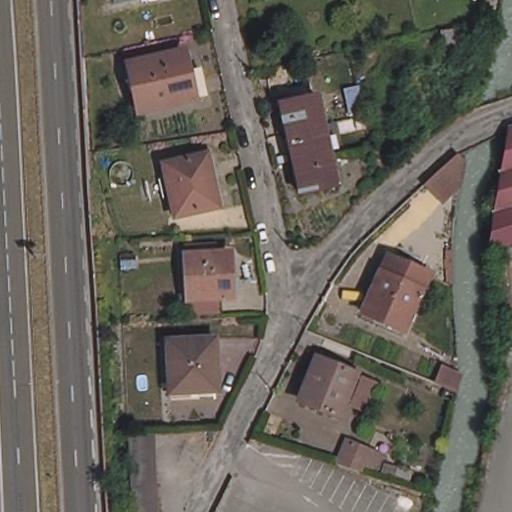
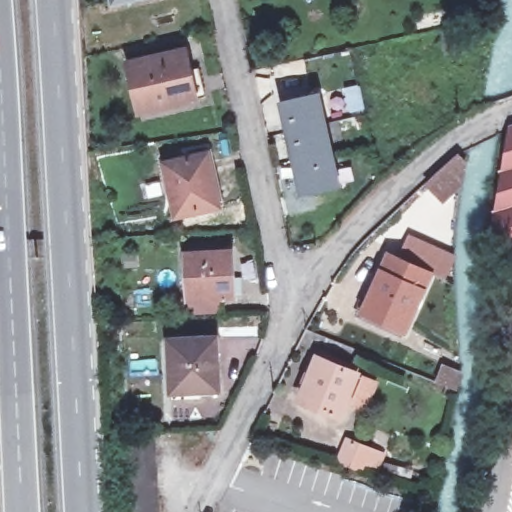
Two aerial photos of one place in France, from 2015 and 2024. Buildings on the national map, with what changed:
unchanged [(117,2),(117,0),(128,0),(117,2)]
unchanged [(464,51),(447,54),(445,32),(461,30),(464,51)]
unchanged [(195,101),(143,112),(132,64),(185,52),(195,101)]
unchanged [(319,92),(338,184),(302,192),(282,101),(319,92)]
unchanged [(512,128),(512,245),(502,244),(491,242),(506,156),(511,129),(512,128)]
unchanged [(455,157),(458,154),(467,164),(466,178),(442,199),(427,182),(455,157)]
unchanged [(218,207),(177,216),(165,165),(207,155),(218,207)]
unchanged [(233,296),(187,298),(185,254),(230,252),(233,296)]
unchanged [(428,272),(401,329),(362,311),(388,255),(428,272)]
unchanged [(218,390),(189,391),(189,388),(170,388),(168,340),(216,337),(218,390)]
unchanged [(302,400),(319,358),(331,363),(334,357),(359,367),(356,373),(340,415),(302,400)]
unchanged [(157,432),(160,512),(133,512),(128,432),(157,432)]
unchanged [(378,472),(367,468),(365,473),(340,465),(350,444),(373,453),(385,458),(378,472)]

